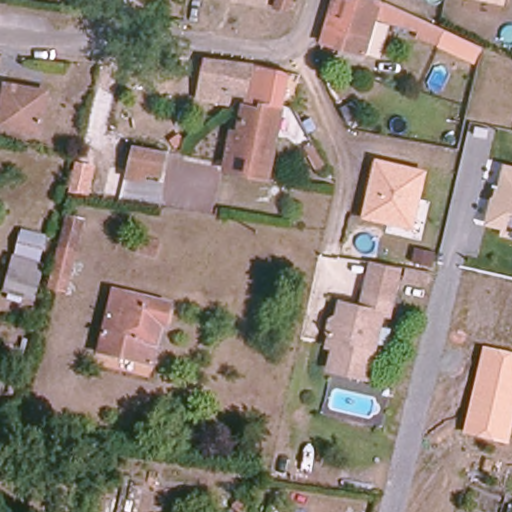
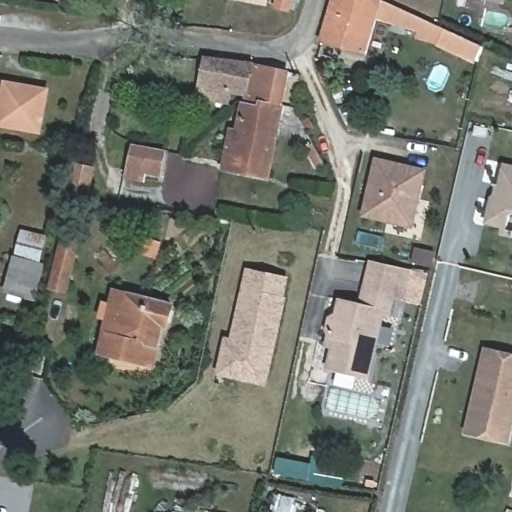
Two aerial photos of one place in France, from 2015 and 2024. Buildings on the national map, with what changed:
unchanged [(266,4),(240,0),(267,0),(266,4)]
unchanged [(349,2),(350,0),(363,0),(386,7),(435,29),(441,31),(437,45),(416,38),(417,33),(374,20),(362,54),(320,42),(319,42),(332,0),(342,0),(349,2)]
unchanged [(202,100),(204,89),(209,60),(255,68),(249,98),(247,97),(233,94),(232,106),(202,100)]
unchanged [(249,98),(255,68),(292,74),(285,109),(260,104),(259,107),(246,105),(246,103),(246,100),(249,98)]
unchanged [(9,80),(50,88),(43,130),(0,124),(9,80)]
unchanged [(259,107),(260,104),(285,109),(272,181),(245,176),(248,164),(229,161),(234,132),(239,133),(246,105),(259,107)]
unchanged [(164,177),(149,175),(146,183),(129,179),(135,147),(168,153),(164,177)]
unchanged [(414,229),(363,217),(376,157),(429,169),(414,229)]
unchanged [(498,237),(499,229),(483,224),(489,193),(494,194),(501,163),(512,165),(512,240),(498,237)]
unchanged [(48,290),(60,245),(67,220),(83,224),(76,249),(64,294),(48,290)]
unchanged [(19,258),(24,231),(46,239),(41,264),(46,266),(36,303),(6,297),(13,258),(19,258)]
unchanged [(146,234),(164,241),(158,258),(140,251),(146,234)]
unchanged [(327,338),(324,334),(327,322),(334,318),(337,305),(341,306),(350,308),(358,310),(362,293),(368,265),(397,268),(389,299),(385,317),(378,316),(363,380),(325,371),(330,348),(325,347),(327,338)]
new [(280,296),(283,297),(269,364),(253,379),(229,358),(238,347),(232,343),(248,271),(284,278),(280,296)]
unchanged [(118,289),(175,303),(169,325),(165,325),(159,348),(106,336),(118,289)]
unchanged [(153,374),(100,360),(106,336),(159,348),(153,374)]
unchanged [(511,443),(465,434),(484,347),(512,352),(512,437),(511,443)]

